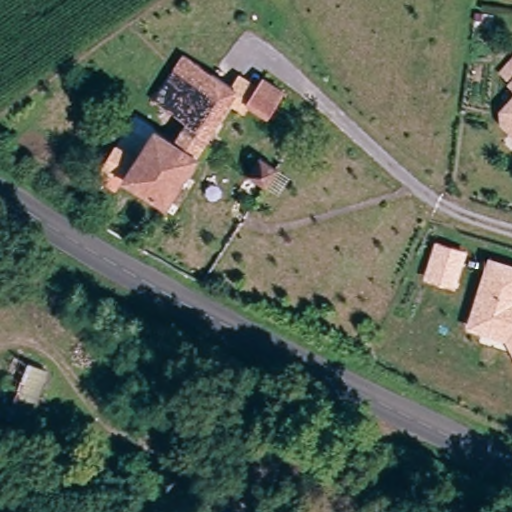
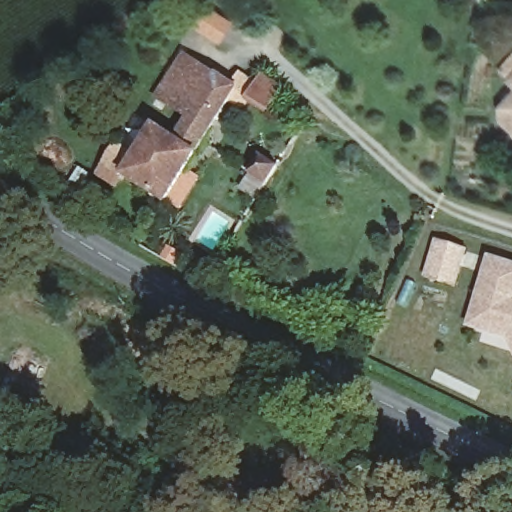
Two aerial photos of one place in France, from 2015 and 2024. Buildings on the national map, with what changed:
unchanged [(132,153),(150,123),(169,135),(180,115),(161,103),(149,95),(160,77),(177,50),(218,76),(226,65),(234,70),(226,82),(234,86),(194,150),(197,152),(166,201),(104,165),(117,144),(132,153)]
unchanged [(504,71),(512,64),(512,81),(504,71)]
unchanged [(282,86),(277,94),(273,100),(268,109),(245,94),(258,72),(271,80),(282,86)]
unchanged [(502,121),(502,110),(512,100),(512,130),(502,121)]
unchanged [(247,169),(260,150),(276,160),(286,165),(273,185),(263,179),(247,169)]
unchanged [(422,278),(435,240),(468,250),(455,288),(422,278)]
unchanged [(506,340),(465,327),(487,255),(512,263),(512,352),(506,340)]
unchanged [(29,423),(0,412),(0,375),(9,351),(49,367),(29,423)]
unchanged [(192,507),(191,512),(177,512),(180,502),(192,507)]

